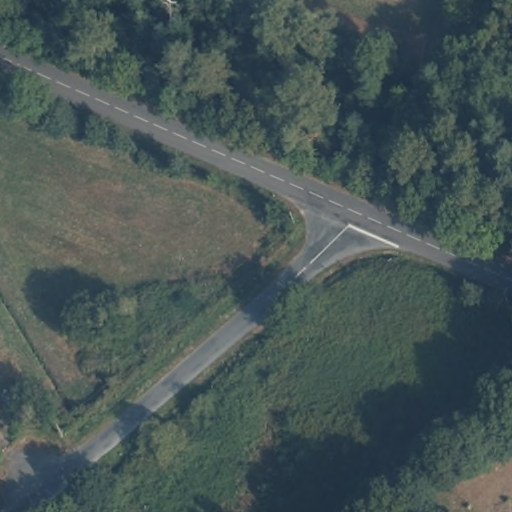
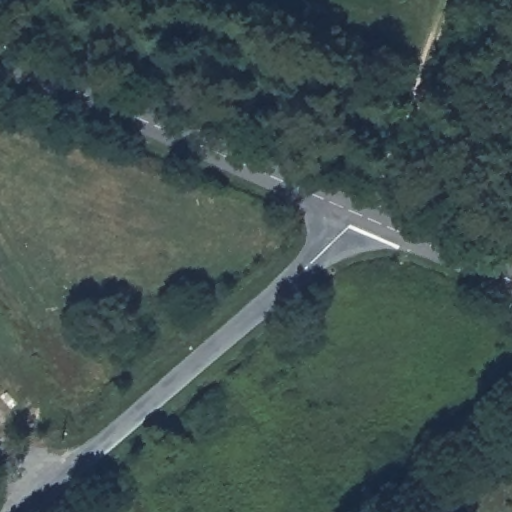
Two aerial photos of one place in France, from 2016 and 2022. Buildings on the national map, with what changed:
[]

